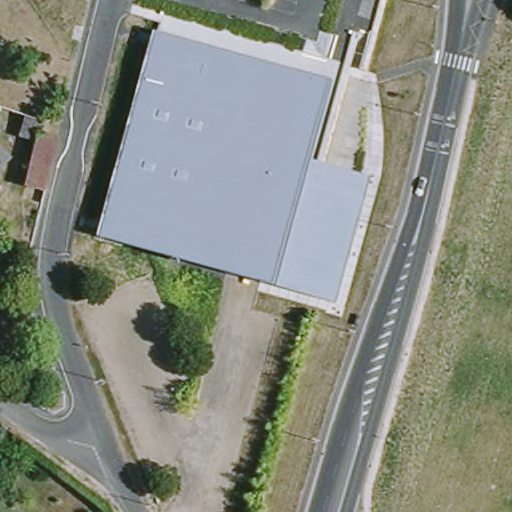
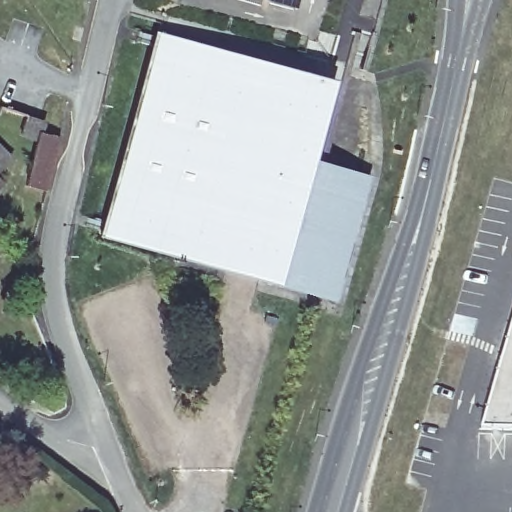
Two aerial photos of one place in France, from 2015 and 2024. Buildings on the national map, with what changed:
new [(262,0),(297,0),(294,9),(262,0)]
unchanged [(100,235),(159,36),(321,84),(297,168),(363,187),(331,297),(330,302),(260,281),(100,235)]
unchanged [(297,168),(321,84),(322,83),(338,89),(316,165),(366,180),(363,187),(297,168)]
unchanged [(6,99),(43,124),(33,136),(0,115),(0,106),(6,99)]
unchanged [(45,202),(42,210),(20,204),(33,136),(57,141),(55,152),(45,202)]
new [(512,432),(479,431),(512,319),(512,432)]

